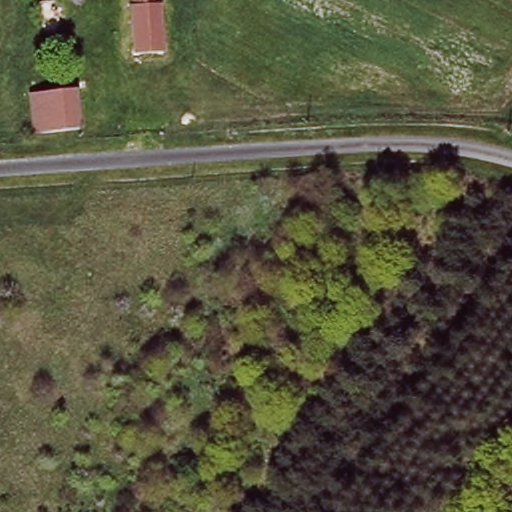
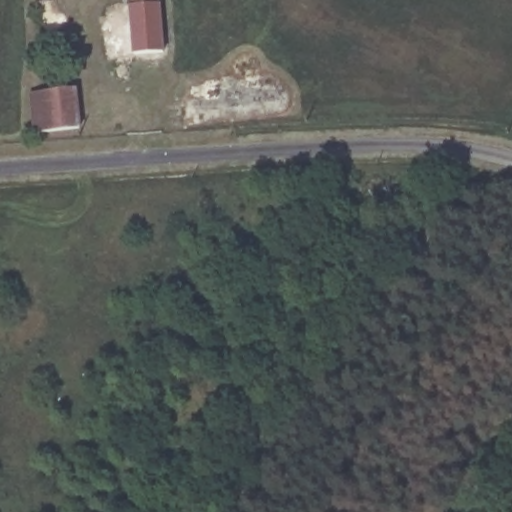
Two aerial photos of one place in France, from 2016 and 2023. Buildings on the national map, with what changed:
unchanged [(160,0),(162,52),(135,55),(133,0),(160,0)]
unchanged [(33,97),(75,96),(77,134),(34,136),(33,97)]

